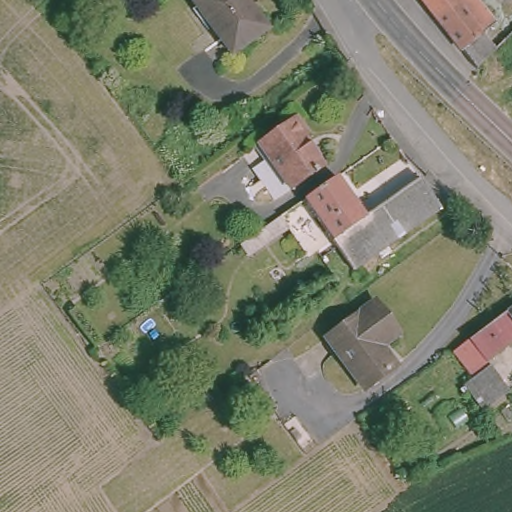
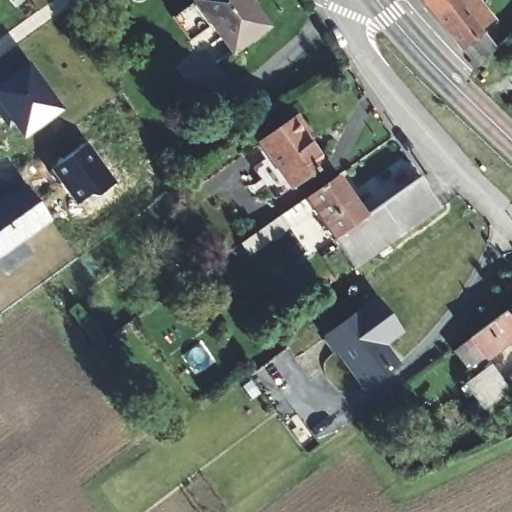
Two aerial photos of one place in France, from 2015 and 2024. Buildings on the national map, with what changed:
unchanged [(206,0),(247,0),(270,31),(234,56),(197,7),(206,0)]
unchanged [(501,19),(487,30),(498,41),(505,35),(500,28),(512,17),(512,37),(501,47),(477,70),(455,40),(425,0),(486,0),(501,19)]
new [(7,127),(0,117),(0,62),(2,61),(12,75),(28,64),(62,110),(22,140),(11,125),(7,127)]
unchanged [(297,110),(314,134),(307,140),(320,159),(290,180),(261,132),(297,110)]
new [(113,185),(96,195),(87,194),(75,203),(49,169),(85,142),(113,185)]
unchanged [(361,212),(416,176),(434,205),(352,265),(330,235),(361,212)]
unchanged [(335,178),(361,212),(330,235),(303,199),(335,178)]
new [(0,259),(0,197),(22,181),(51,221),(0,259)]
unchanged [(368,300),(391,335),(376,347),(387,366),(361,388),(320,336),(368,300)]
unchanged [(512,324),(502,309),(512,302),(512,324)]
unchanged [(502,309),(512,324),(512,337),(485,357),(502,378),(476,395),(445,353),(500,311),(502,309)]

